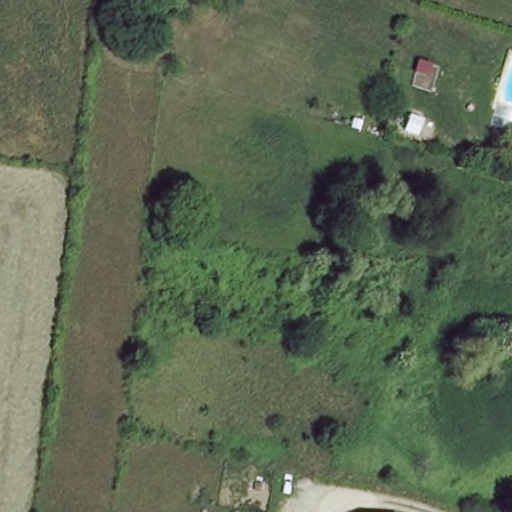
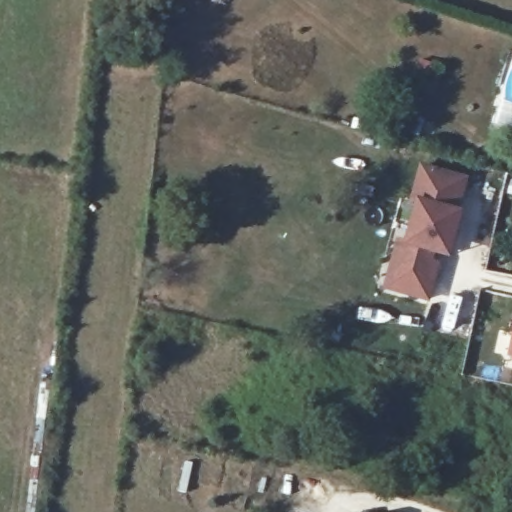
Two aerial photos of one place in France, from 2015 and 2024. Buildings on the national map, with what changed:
new [(404,114),(424,120),(417,137),(398,130),(404,114)]
new [(430,302),(382,290),(396,237),(405,239),(414,204),(409,202),(419,163),(467,175),(458,210),(462,210),(450,258),(432,254),(432,260),(440,263),(430,302)]
new [(506,357),(512,331),(512,358),(506,357)]

